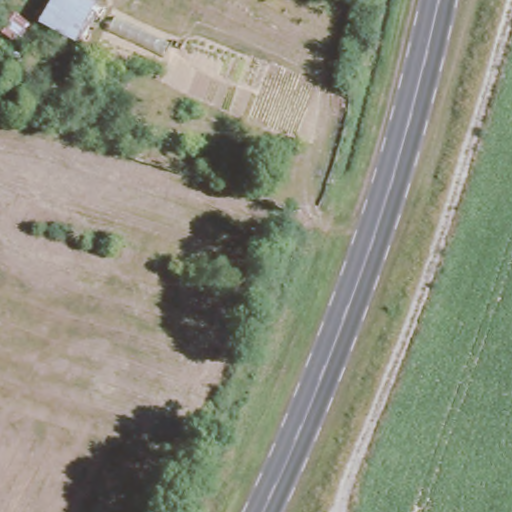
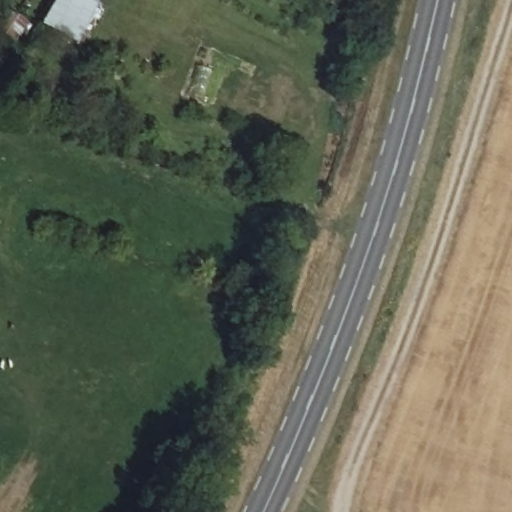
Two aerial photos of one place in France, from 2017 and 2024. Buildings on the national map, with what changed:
unchanged [(50,0),(84,0),(95,6),(77,49),(38,26),(50,0)]

